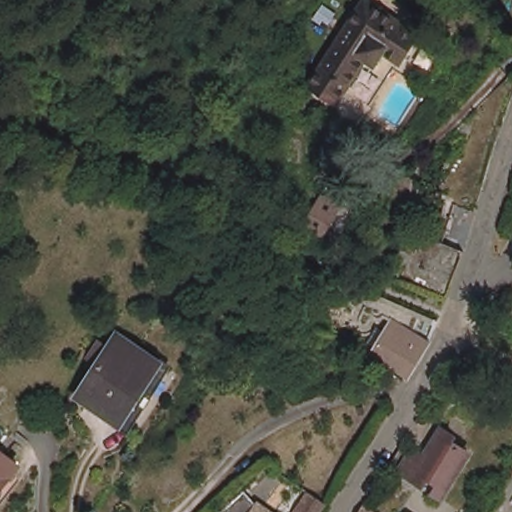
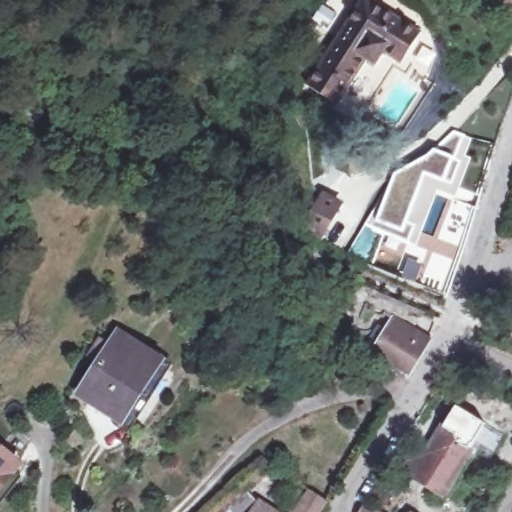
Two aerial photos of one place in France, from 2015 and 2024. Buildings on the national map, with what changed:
unchanged [(373,57),(343,102),(311,81),(365,0),(381,0),(428,31),(409,59),(392,47),(382,62),(373,57)]
new [(453,185),(433,236),(421,232),(415,246),(371,229),(395,177),(441,153),(450,131),(472,140),(465,157),(471,159),(460,187),(453,185)]
unchanged [(342,204),(324,234),(307,223),(325,194),(342,204)]
unchanged [(466,249),(448,298),(405,282),(415,258),(432,266),(444,240),(466,249)]
unchanged [(427,348),(411,373),(376,350),(395,318),(411,328),(407,336),(427,348)]
unchanged [(129,424),(119,419),(79,392),(99,364),(89,356),(101,340),(110,347),(118,336),(141,351),(167,367),(129,424)]
unchanged [(414,474),(401,466),(414,444),(427,452),(444,426),(457,433),(454,438),(471,449),(444,493),(435,487),(427,482),(414,474)]
unchanged [(16,461),(0,480),(0,448),(16,461)]
unchanged [(264,504),(266,501),(281,512),(218,512),(248,485),(264,504)]
unchanged [(299,512),(311,496),(328,507),(325,512),(299,512)]
unchanged [(380,512),(361,512),(367,503),(380,512)]

